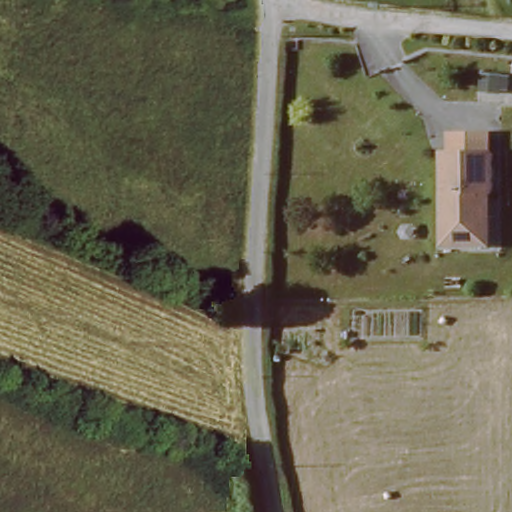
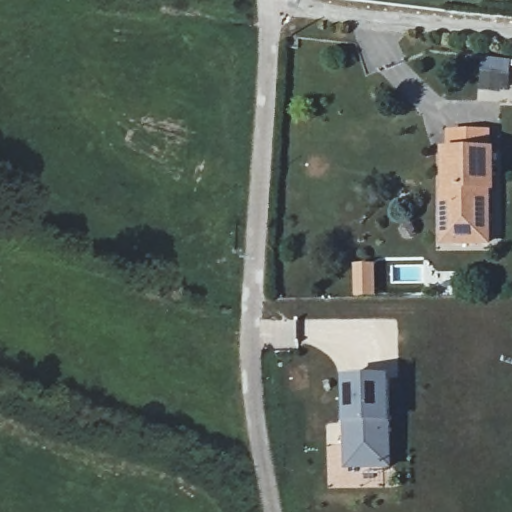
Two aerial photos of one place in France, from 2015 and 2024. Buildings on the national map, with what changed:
unchanged [(445,193),(447,193),(448,147),(495,147),(492,193),(488,193),(487,241),(442,238),(445,193)]
new [(345,379),(393,377),(394,424),(395,470),(346,472),(345,425),(345,379)]

